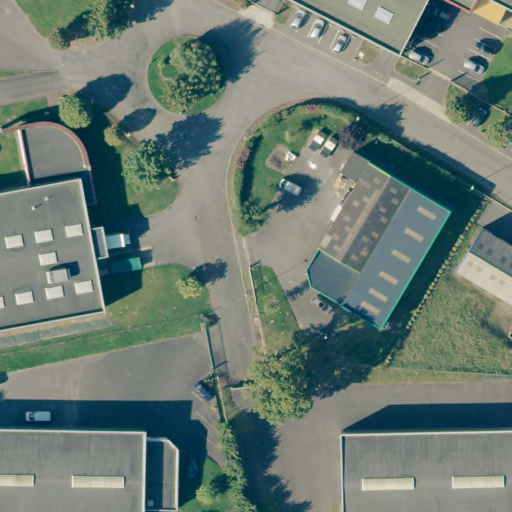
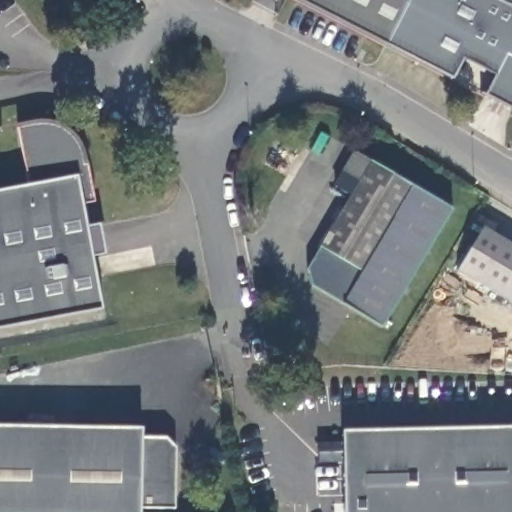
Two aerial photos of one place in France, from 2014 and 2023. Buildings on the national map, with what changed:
new [(450,80),(297,0),(501,0),(512,6),(512,111),(450,80)]
demolished [(298,0),(416,0),(391,47),(298,0)]
demolished [(454,0),(483,0),(477,12),(454,0)]
unchanged [(501,0),(512,0),(512,6),(501,0)]
unchanged [(95,202),(83,204),(102,310),(0,329),(0,192),(28,186),(16,127),(26,126),(30,125),(34,125),(38,125),(42,125),(46,126),(50,127),(54,128),(57,130),(60,131),(64,134),(67,136),(70,139),(73,141),(75,145),(77,147),(80,151),(81,155),(83,158),(84,161),(85,165),(88,165),(95,202)]
unchanged [(344,305),(311,286),(307,268),(320,247),(359,182),(341,172),(354,151),(414,187),(344,305)]
unchanged [(435,200),(452,210),(382,328),(365,317),(344,305),(414,187),(435,200)]
unchanged [(512,245),(512,303),(457,271),(483,228),(512,245)]
unchanged [(136,437),(161,437),(170,448),(170,509),(135,508),(135,512),(0,512),(0,426),(136,428),(136,437)]
unchanged [(512,427),(512,512),(343,512),(341,431),(512,427)]

